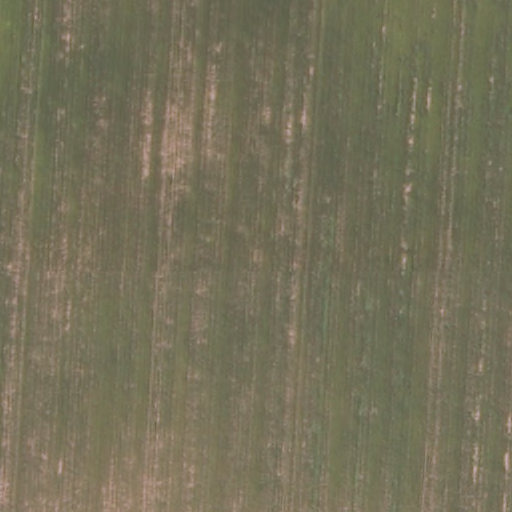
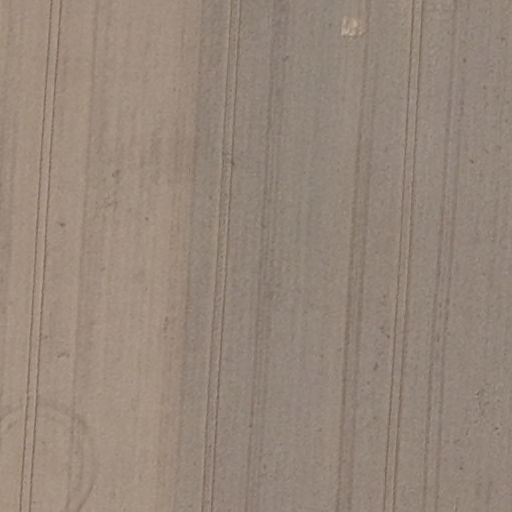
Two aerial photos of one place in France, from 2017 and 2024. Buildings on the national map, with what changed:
[]

